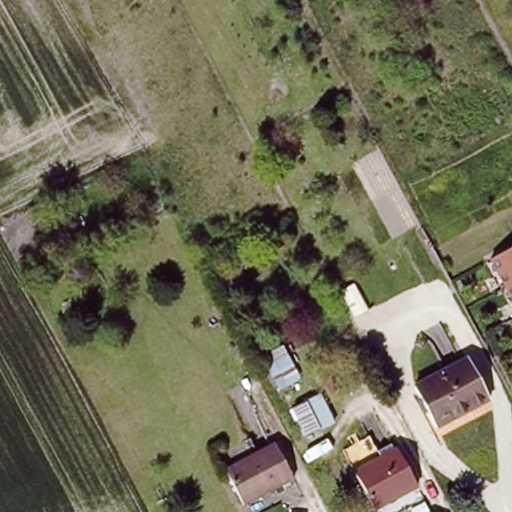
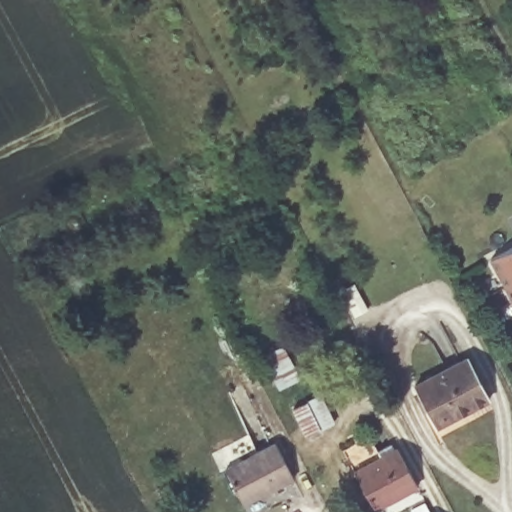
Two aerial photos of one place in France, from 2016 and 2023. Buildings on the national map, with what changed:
unchanged [(512,247),(512,297),(491,259),(512,247)]
unchanged [(496,402),(443,429),(421,388),(475,361),(496,402)]
unchanged [(242,507),(225,471),(278,446),(294,482),(242,507)]
unchanged [(418,486),(375,509),(356,472),(399,450),(418,486)]
unchanged [(426,512),(431,509),(432,512),(426,512)]

